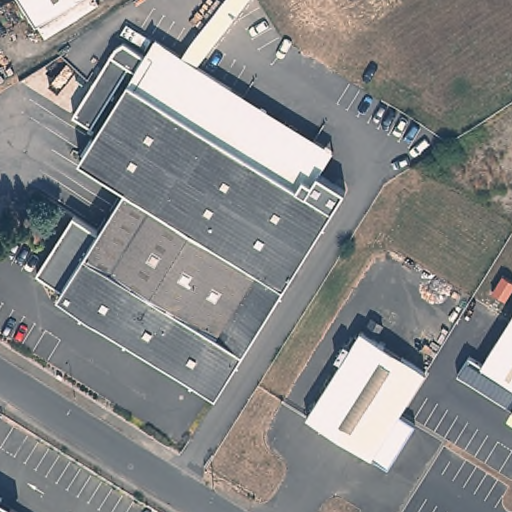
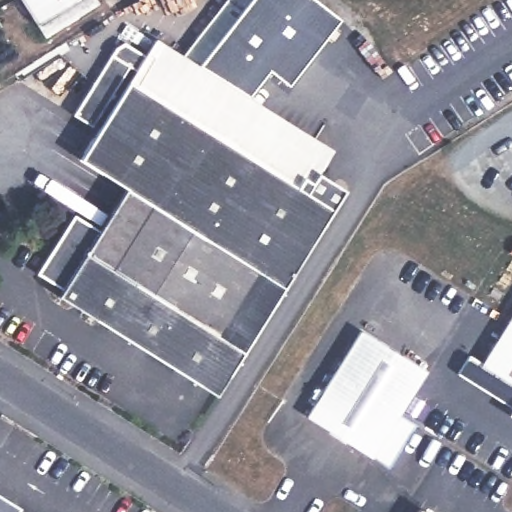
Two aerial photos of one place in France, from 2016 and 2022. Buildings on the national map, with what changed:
unchanged [(41,26),(25,0),(83,0),(41,26)]
new [(224,0),(316,0),(339,18),(286,87),(266,72),(246,98),(197,67),(179,56),(224,0)]
unchanged [(75,118),(113,52),(123,45),(145,59),(156,41),(335,155),(313,190),(293,177),(134,77),(105,124),(99,133),(75,118)]
unchanged [(337,191),(331,201),(338,205),(330,218),(286,287),(129,188),(131,184),(85,155),(99,133),(134,77),(293,177),(313,190),(318,193),(324,183),(337,191)]
unchanged [(101,232),(129,188),(286,287),(246,352),(220,336),(211,352),(162,322),(168,307),(89,257),(86,256),(101,232)]
unchanged [(96,240),(86,256),(63,292),(37,274),(74,216),(101,232),(96,240)]
unchanged [(89,257),(168,307),(162,322),(211,352),(220,336),(246,352),(221,391),(63,292),(86,256),(89,257)]
unchanged [(474,362),(487,370),(512,329),(512,410),(463,379),(474,362)]
unchanged [(425,372),(398,414),(416,426),(389,469),(306,418),(360,331),(425,372)]
unchanged [(19,508),(17,512),(0,512),(0,497),(19,508)]

